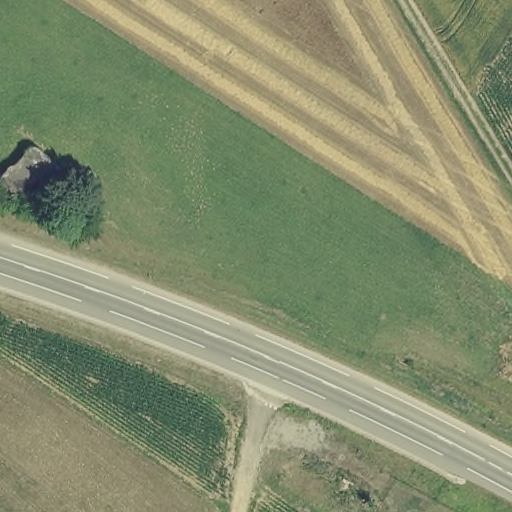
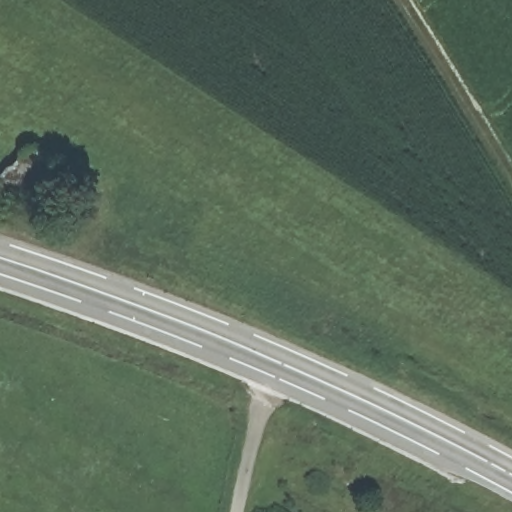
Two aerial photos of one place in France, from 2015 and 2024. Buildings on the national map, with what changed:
unchanged [(39,211),(2,179),(35,145),(73,181),(39,211)]

